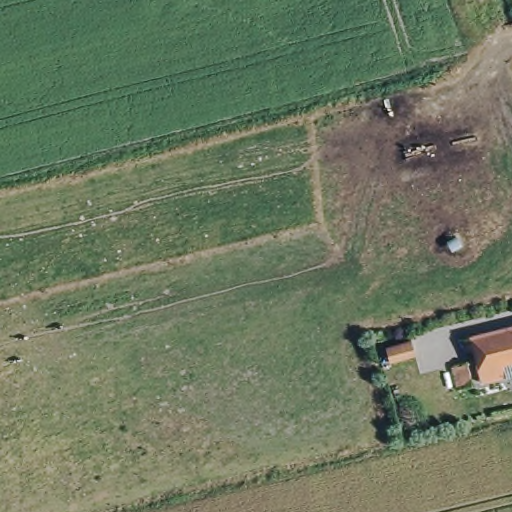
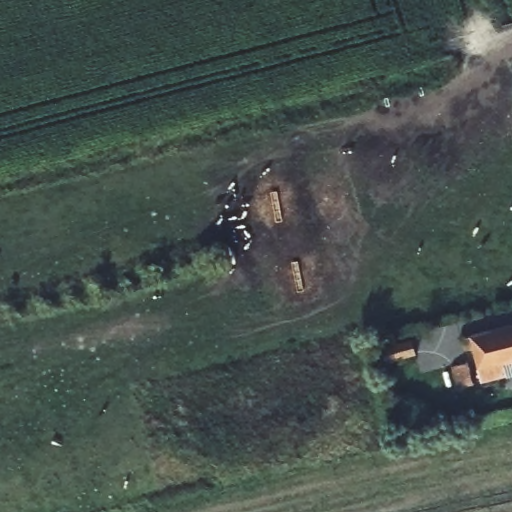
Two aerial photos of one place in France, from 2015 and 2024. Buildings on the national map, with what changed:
unchanged [(512,322),(512,371),(503,373),(478,379),(470,345),(462,347),(459,335),(512,322)]
unchanged [(379,336),(391,334),(405,331),(408,346),(393,349),(382,351),(379,336)]
unchanged [(464,359),(469,381),(454,385),(448,363),(464,359)]

